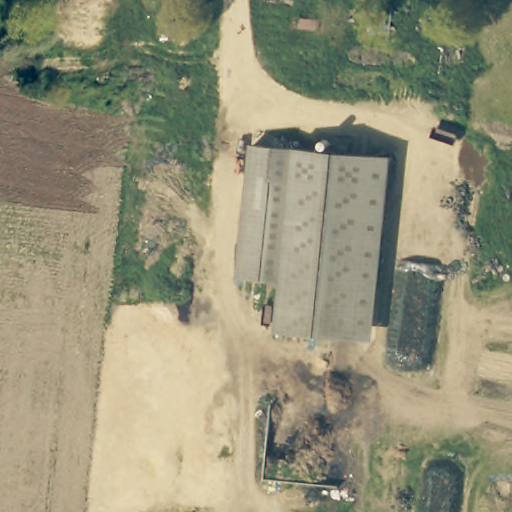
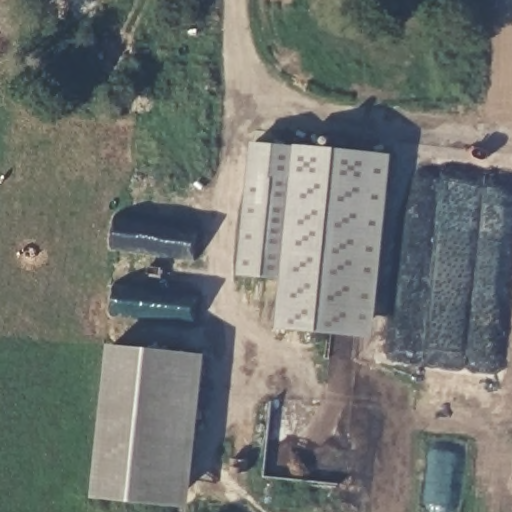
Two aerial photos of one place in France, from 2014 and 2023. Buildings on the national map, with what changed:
unchanged [(236,269),(250,139),(385,155),(367,335),(270,326),(280,274),(236,269)]
new [(190,510),(90,500),(107,346),(205,357),(190,510)]

